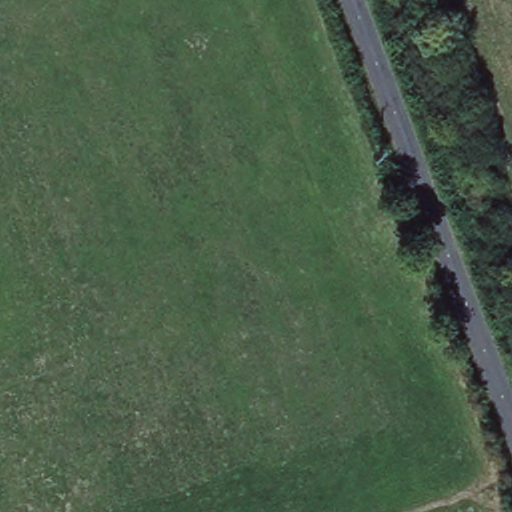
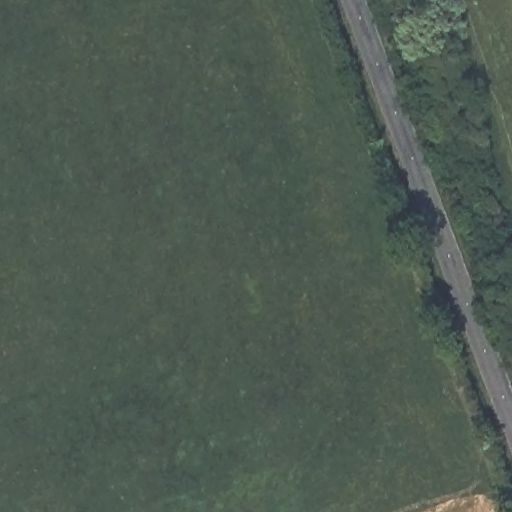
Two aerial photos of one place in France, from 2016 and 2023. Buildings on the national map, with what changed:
unchanged [(448,111),(430,118),(426,105),(444,99),(448,111)]

